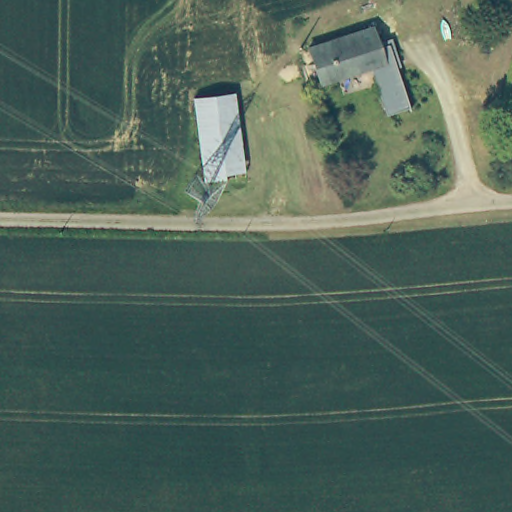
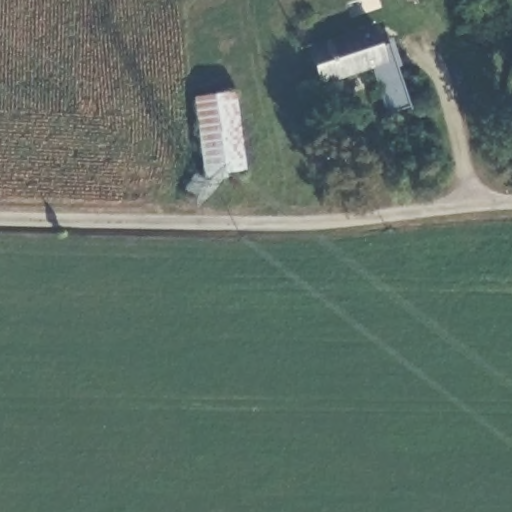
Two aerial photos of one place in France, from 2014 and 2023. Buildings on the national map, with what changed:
unchanged [(312,44),(376,25),(382,45),(391,42),(410,106),(386,113),(372,65),(322,80),(312,44)]
unchanged [(194,95),(235,93),(240,177),(199,179),(194,95)]

